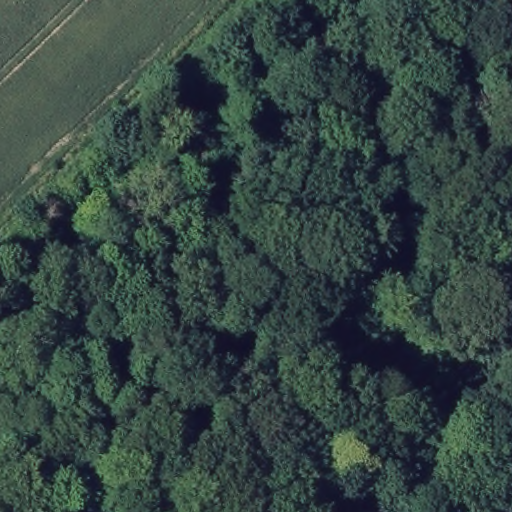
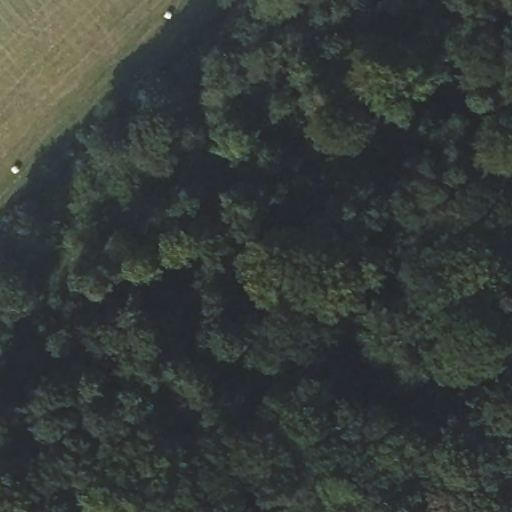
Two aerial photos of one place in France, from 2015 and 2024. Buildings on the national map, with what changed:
[]

